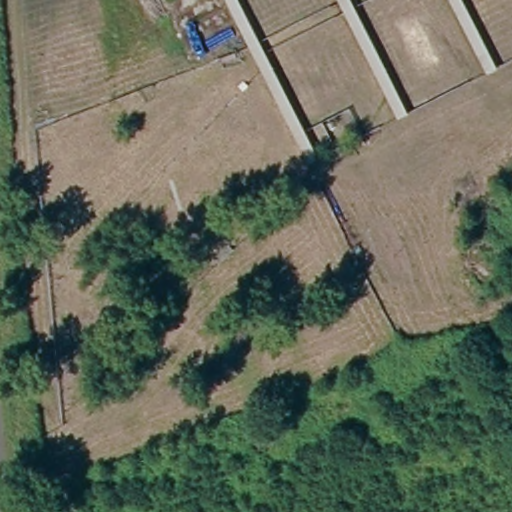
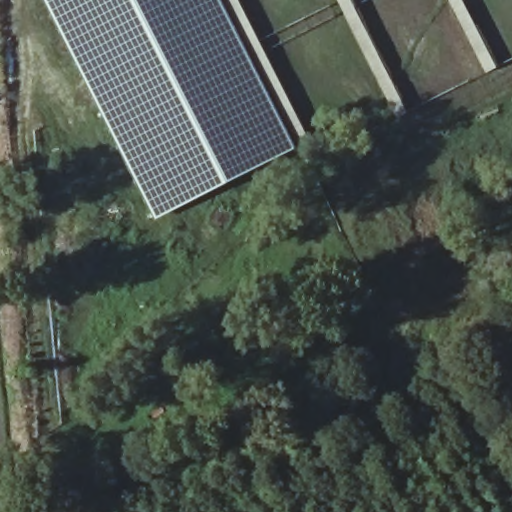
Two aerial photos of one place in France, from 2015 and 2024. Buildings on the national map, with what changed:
new [(262,85),(285,126),(295,149),(154,220),(124,164),(42,0),(219,0),(262,85)]
new [(251,29),(296,122),(293,124),(292,122),(285,126),(262,85),(219,0),(237,0),(251,29)]

